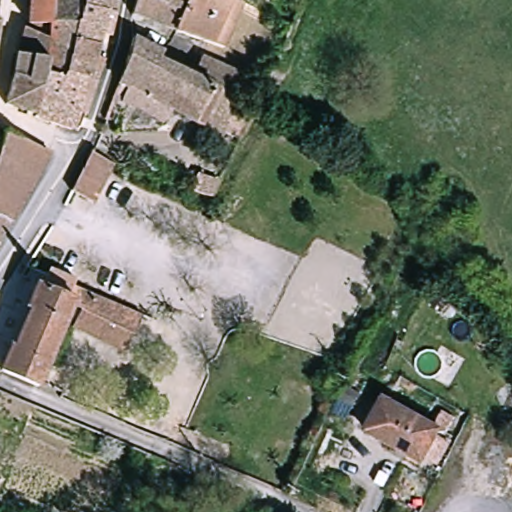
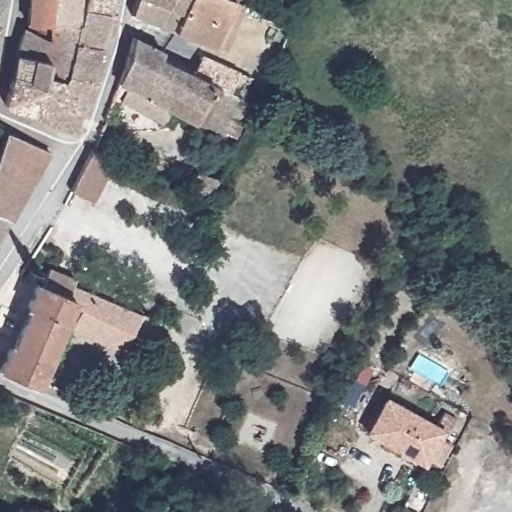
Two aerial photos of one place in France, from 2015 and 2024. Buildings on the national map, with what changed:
unchanged [(41,68),(41,59),(15,55),(16,48),(20,31),(24,22),(26,0),(116,0),(113,12),(107,34),(98,33),(95,46),(105,48),(93,78),(74,127),(32,114),(41,68)]
unchanged [(223,43),(213,39),(179,26),(165,22),(134,10),(137,0),(242,0),(223,43)]
unchanged [(0,55),(0,20),(7,21),(0,55)]
unchanged [(138,37),(171,51),(169,54),(196,69),(201,72),(209,58),(241,75),(252,81),(243,96),(222,134),(169,105),(160,121),(119,98),(127,82),(119,78),(138,37)]
unchanged [(2,104),(11,78),(15,55),(41,59),(41,68),(32,114),(2,104)]
unchanged [(57,150),(17,218),(3,241),(0,240),(0,165),(11,126),(57,150)]
unchanged [(116,159),(98,198),(78,189),(95,150),(116,159)]
unchanged [(221,189),(203,183),(210,167),(228,174),(221,189)]
unchanged [(13,345),(28,306),(25,305),(35,278),(39,279),(42,272),(45,264),(71,273),(68,282),(90,291),(140,310),(132,330),(82,309),(83,306),(67,300),(38,382),(1,367),(10,344),(13,345)]
unchanged [(73,330),(82,309),(132,330),(122,351),(73,330)]
unchanged [(426,453),(424,457),(410,450),(368,424),(389,391),(428,415),(444,425),(440,431),(452,437),(438,460),(426,453)]

